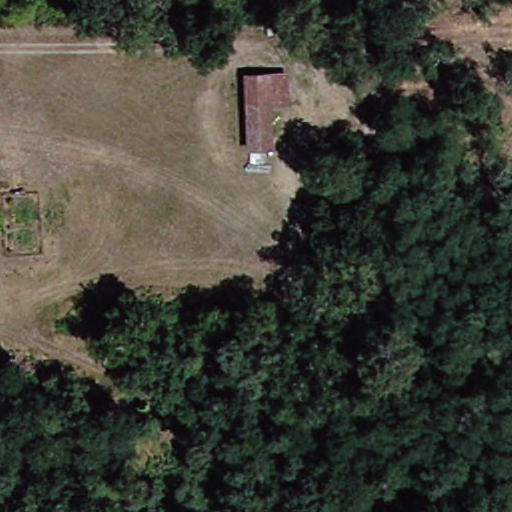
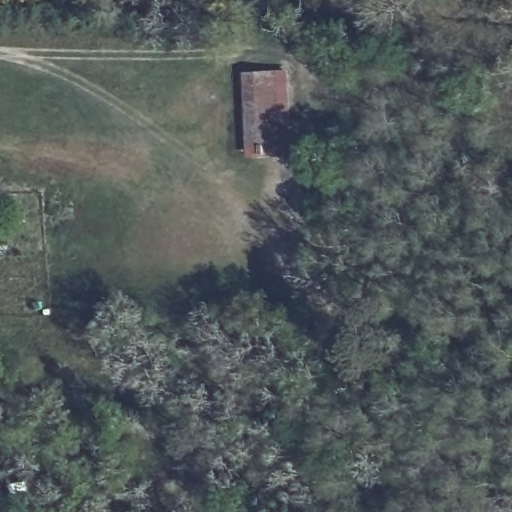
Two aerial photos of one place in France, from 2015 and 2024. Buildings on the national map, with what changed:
unchanged [(256,71),(278,71),(278,144),(256,144),(256,71)]

